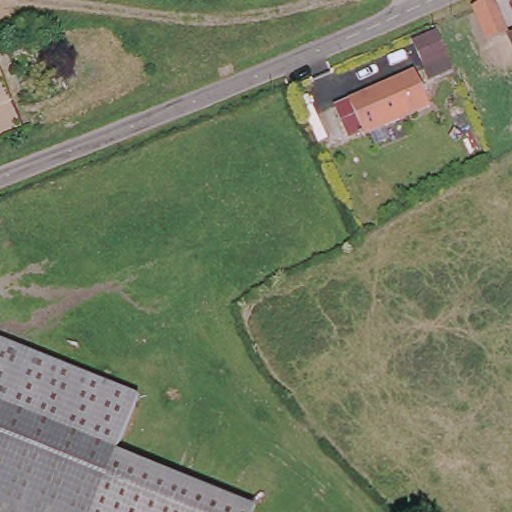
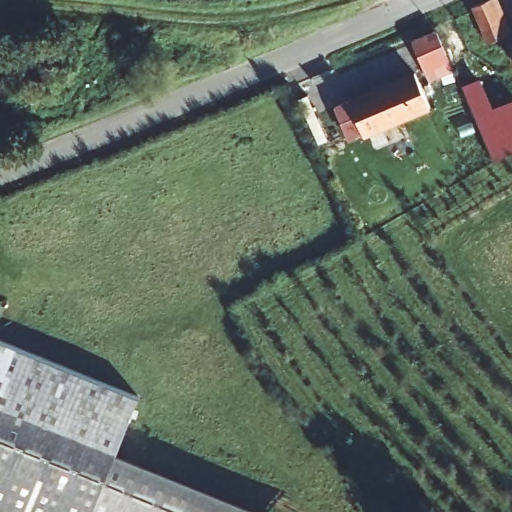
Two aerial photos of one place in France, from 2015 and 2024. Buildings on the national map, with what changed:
unchanged [(487,42),(468,2),(473,0),(493,0),(507,35),(487,42)]
unchanged [(452,58),(427,67),(418,37),(442,30),(452,58)]
unchanged [(512,33),(512,43),(507,35),(512,33)]
unchanged [(350,97),(417,72),(430,107),(363,133),(350,97)]
new [(493,107),(512,100),(512,151),(495,159),(470,103),(488,96),(493,107)]
unchanged [(140,396),(117,456),(272,512),(0,512),(0,341),(140,396)]

